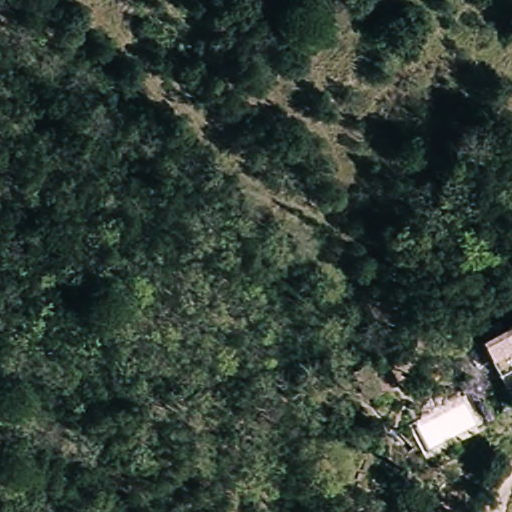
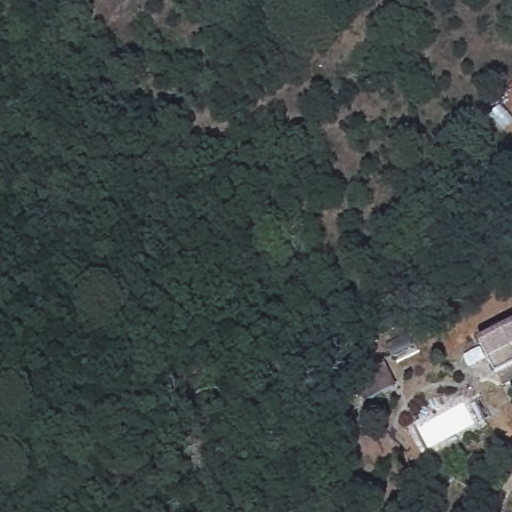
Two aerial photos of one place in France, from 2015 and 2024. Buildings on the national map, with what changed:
unchanged [(496,387),(477,346),(480,342),(475,331),(497,322),(502,334),(512,330),(512,380),(496,387)]

